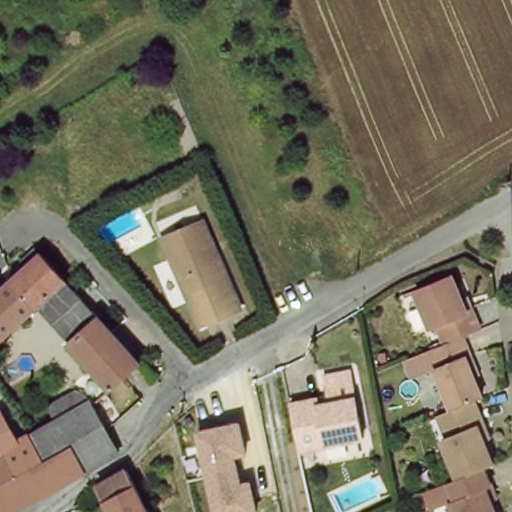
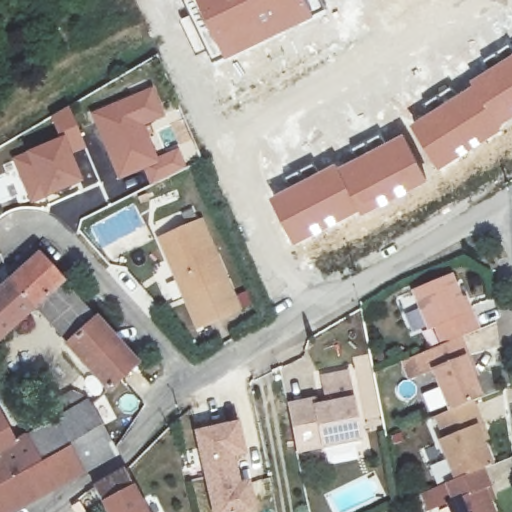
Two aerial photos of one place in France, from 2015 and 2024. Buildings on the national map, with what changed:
new [(198,0),(311,0),(324,0),(327,8),(318,14),(298,25),(226,59),(215,61),(185,0),(198,0)]
new [(469,79),(489,65),(486,60),(490,58),(493,61),(512,51),(512,122),(492,137),(440,169),(411,120),(471,83),(469,79)]
new [(153,89),(165,117),(144,126),(156,158),(178,150),(186,171),(153,186),(146,169),(118,180),(90,114),(153,89)]
new [(28,151),(58,141),(50,117),(67,107),(86,148),(70,152),(82,181),(45,198),(31,205),(14,159),(28,151)]
new [(403,131),(428,182),(363,216),(361,212),(338,164),(403,131)]
new [(336,161),(338,164),(361,212),(295,245),(269,195),(336,161)]
unchanged [(198,226),(239,310),(205,325),(163,241),(198,226)]
unchanged [(16,284),(46,256),(68,282),(39,308),(16,284)]
unchanged [(453,340),(449,341),(440,321),(434,325),(419,287),(456,271),(471,307),(475,306),(486,327),(477,330),(465,335),(453,340)]
unchanged [(113,390),(40,310),(39,308),(68,282),(70,283),(142,365),(113,390)]
unchanged [(16,284),(39,308),(40,310),(0,347),(0,299),(16,284)]
unchanged [(468,360),(483,396),(476,398),(453,407),(439,367),(429,371),(418,375),(416,376),(409,357),(415,355),(422,352),(436,346),(449,341),(453,340),(465,335),(475,356),(468,360)]
unchanged [(350,385),(362,442),(295,456),(292,442),(285,408),(313,403),(327,400),(325,391),(350,385)]
unchanged [(32,433),(47,425),(41,411),(87,387),(93,398),(95,401),(122,448),(90,466),(75,440),(46,456),(32,433)]
unchanged [(485,422),(480,425),(493,461),(486,467),(459,477),(444,438),(450,436),(440,412),(453,407),(476,398),(485,422)]
unchanged [(90,466),(12,512),(0,512),(0,511),(0,424),(7,419),(18,440),(32,433),(46,456),(75,440),(90,466)]
unchanged [(240,423),(246,456),(235,458),(240,484),(251,481),(257,512),(212,512),(194,432),(240,423)]
unchanged [(487,490),(496,512),(456,512),(452,502),(430,512),(429,512),(421,495),(449,481),(459,477),(486,467),(493,488),(487,490)]
unchanged [(132,468),(155,512),(116,512),(103,485),(132,468)]

